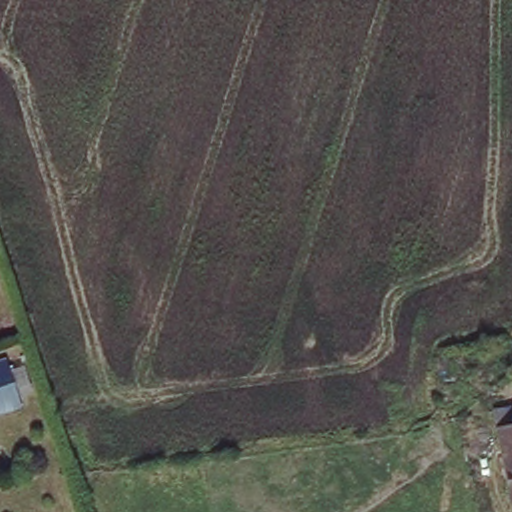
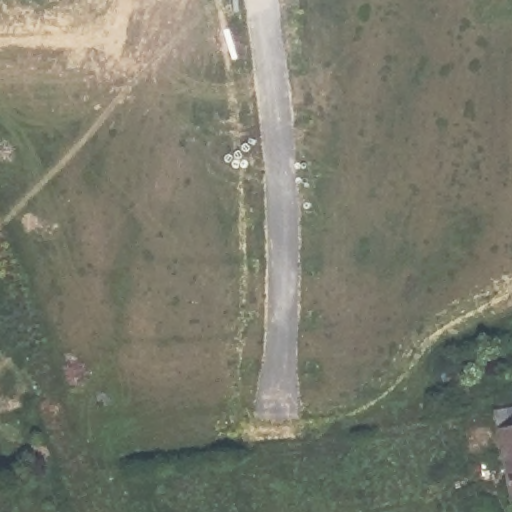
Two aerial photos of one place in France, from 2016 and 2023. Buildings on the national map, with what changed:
new [(22,407),(0,414),(0,360),(8,358),(22,407)]
unchanged [(491,423),(512,419),(512,498),(504,500),(491,423)]

